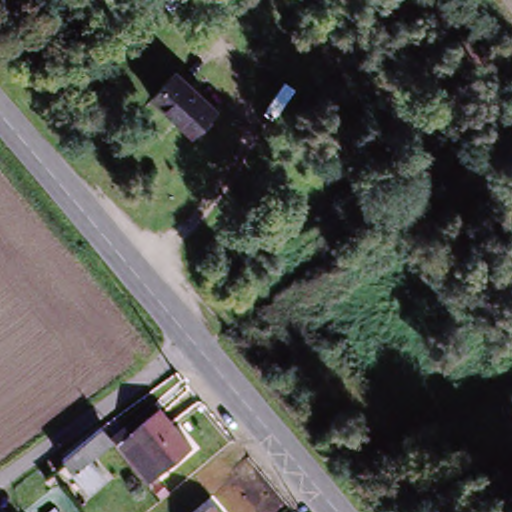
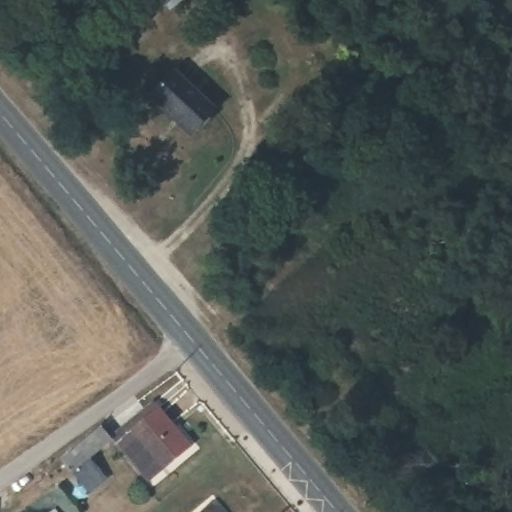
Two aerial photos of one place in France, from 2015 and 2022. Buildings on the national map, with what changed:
unchanged [(211,119),(185,141),(150,96),(175,74),(211,119)]
unchanged [(117,435),(152,406),(157,412),(158,410),(190,450),(148,484),(111,441),(117,435)]
unchanged [(111,441),(106,446),(91,460),(106,479),(92,492),(63,462),(100,427),(111,441)]

